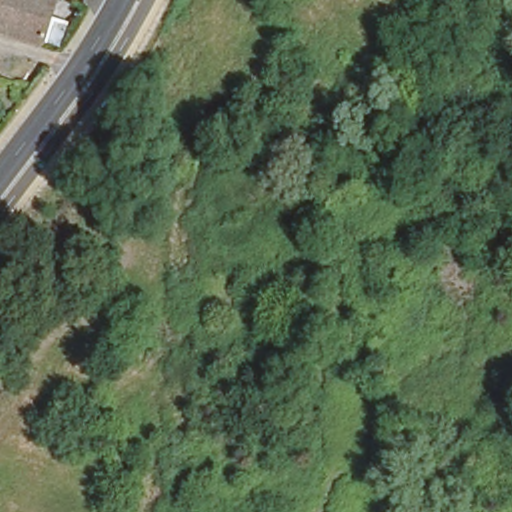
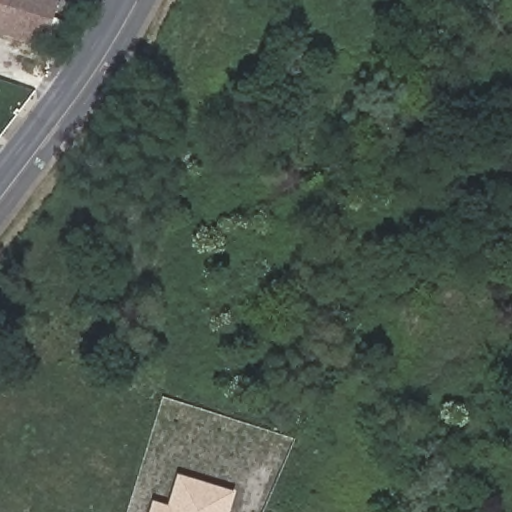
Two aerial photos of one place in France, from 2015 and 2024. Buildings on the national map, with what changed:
unchanged [(32,50),(0,39),(0,0),(24,0),(46,7),(32,50)]
new [(152,502),(168,507),(177,476),(203,483),(232,492),(226,512),(150,512),(152,502)]

